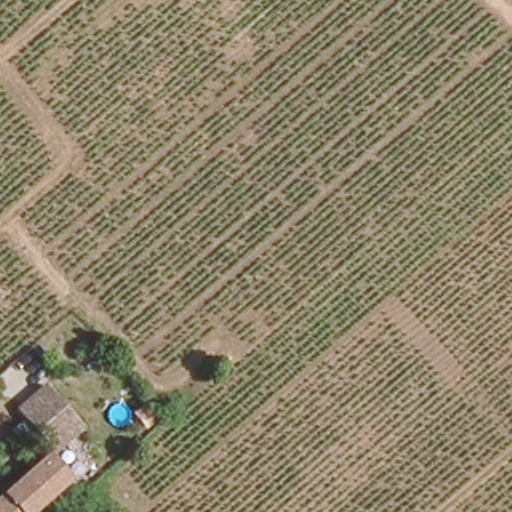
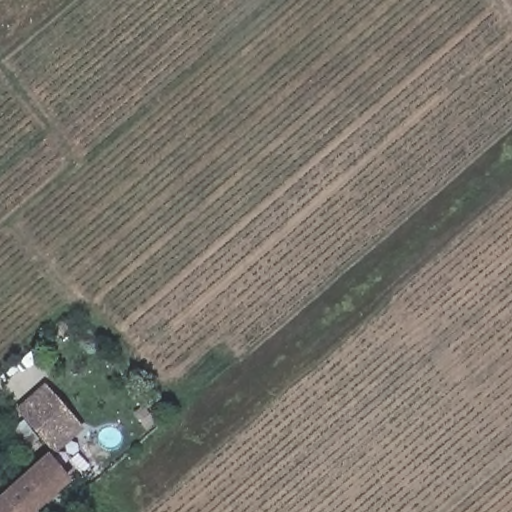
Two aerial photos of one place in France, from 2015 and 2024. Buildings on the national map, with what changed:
unchanged [(48,387),(51,392),(79,427),(81,430),(54,453),(52,450),(24,415),(21,411),(48,387)]
unchanged [(53,461),(68,480),(31,512),(24,512),(7,493),(49,457),(53,461)]
unchanged [(24,512),(0,512),(0,499),(7,493),(24,512)]

